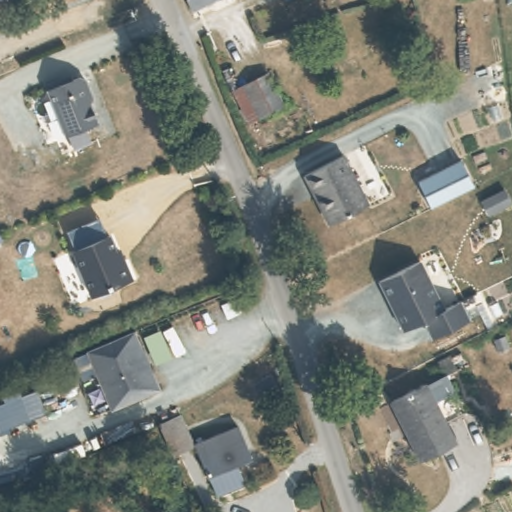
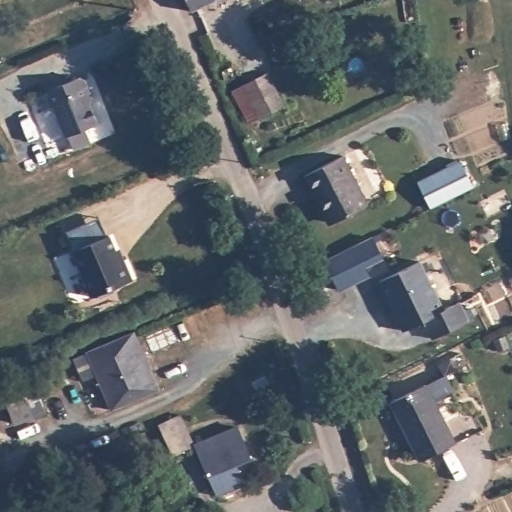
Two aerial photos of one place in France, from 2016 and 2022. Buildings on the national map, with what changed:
unchanged [(188,0),(220,0),(194,12),(188,0)]
unchanged [(57,79),(60,84),(75,76),(80,77),(91,99),(87,103),(96,121),(83,128),(90,140),(73,150),(66,135),(64,135),(42,86),(57,79)]
unchanged [(263,77),(280,111),(247,129),(230,95),(263,77)]
unchanged [(338,161),(363,210),(328,229),(311,196),(307,198),(299,182),(338,161)]
unchanged [(416,189),(458,166),(472,193),(467,195),(430,215),(416,189)]
new [(383,257),(367,266),(371,276),(340,292),(324,260),(373,235),(383,257)]
unchanged [(107,237),(120,265),(122,263),(131,282),(91,300),(71,253),(107,237)]
unchanged [(418,260),(441,308),(457,301),(466,320),(430,340),(421,321),(402,332),(378,282),(418,260)]
unchanged [(127,325),(134,339),(127,342),(139,363),(144,361),(152,382),(106,403),(79,345),(127,325)]
unchanged [(422,390),(446,377),(456,395),(430,406),(422,390)]
unchanged [(420,390),(452,447),(417,467),(384,409),(420,390)]
unchanged [(1,427),(4,440),(0,442),(0,394),(7,391),(17,420),(1,427)]
unchanged [(187,453),(169,460),(154,426),(170,418),(187,453)]
unchanged [(232,433),(245,462),(205,482),(191,452),(232,433)]

